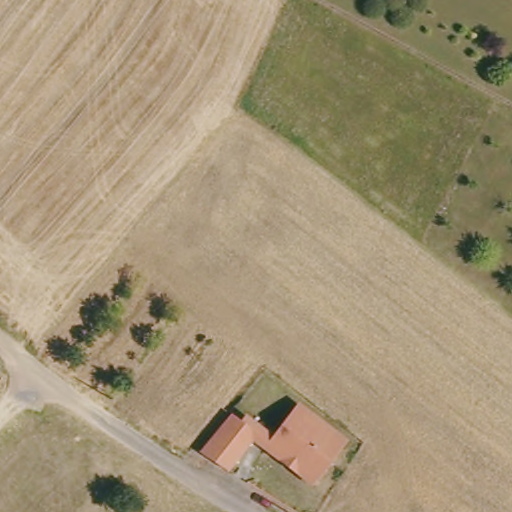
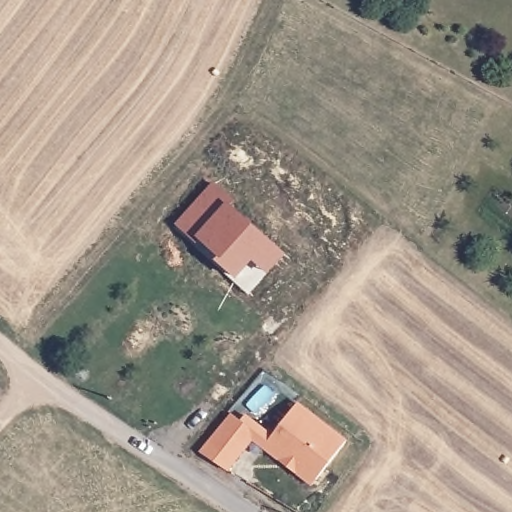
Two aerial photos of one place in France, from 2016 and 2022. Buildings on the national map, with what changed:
new [(200,238),(196,241),(179,224),(214,184),(233,201),(230,206),(268,241),(284,256),(270,272),(253,258),(238,276),(200,238)]
unchanged [(296,401),(344,439),(314,477),(298,464),(296,450),(283,452),(266,438),(296,401)]
unchanged [(232,410),(254,428),(224,465),(199,448),(232,410)]

